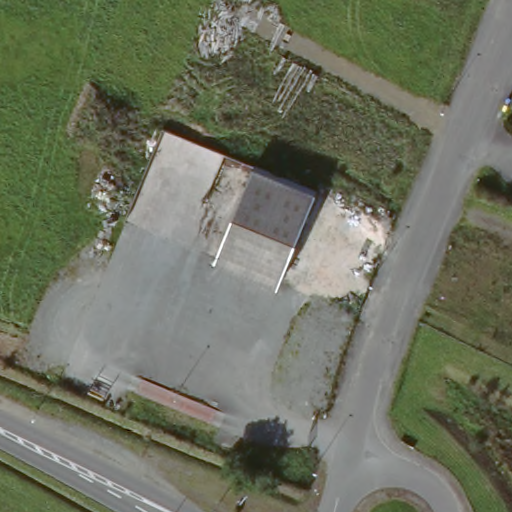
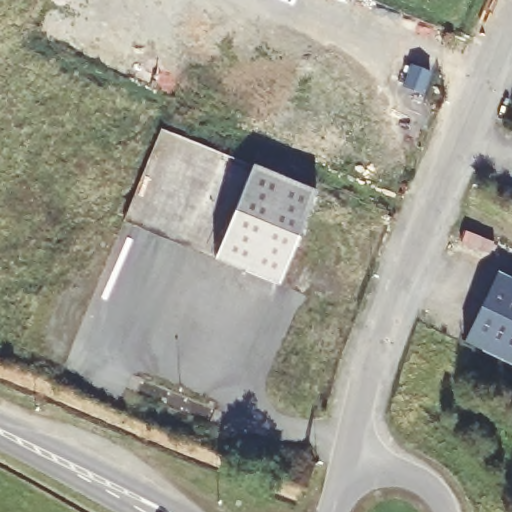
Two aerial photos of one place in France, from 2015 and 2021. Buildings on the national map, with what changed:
unchanged [(277,288),(214,260),(252,164),(318,190),(277,288)]
new [(512,279),(512,368),(463,345),(499,272),(512,279)]

